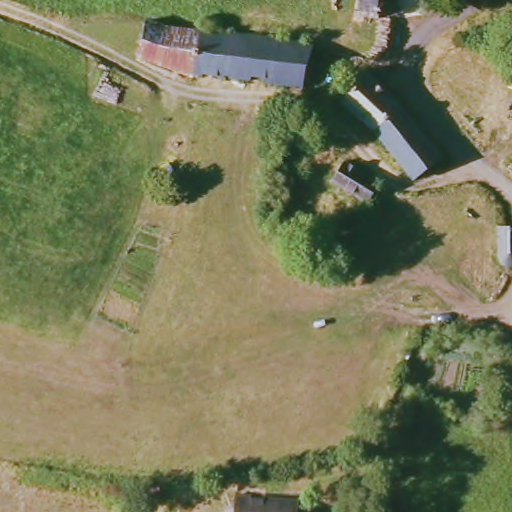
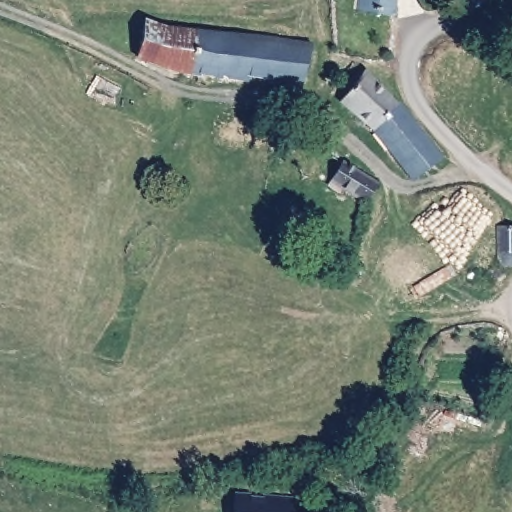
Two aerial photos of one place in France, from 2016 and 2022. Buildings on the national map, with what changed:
unchanged [(364,0),(398,0),(396,15),(362,10),(364,0)]
unchanged [(147,27),(204,34),(200,79),(140,61),(147,27)]
unchanged [(204,34),(242,38),(237,84),(200,79),(204,34)]
unchanged [(310,92),(237,84),(242,38),(313,49),(310,92)]
unchanged [(373,136),(340,102),(364,70),(403,108),(373,136)]
unchanged [(437,156),(412,179),(399,161),(373,136),(403,108),(437,156)]
unchanged [(378,180),(365,201),(332,182),(343,160),(378,180)]
unchanged [(512,259),(492,258),(495,225),(502,225),(512,226),(512,259)]
unchanged [(304,505),(303,512),(240,512),(242,499),(304,505)]

